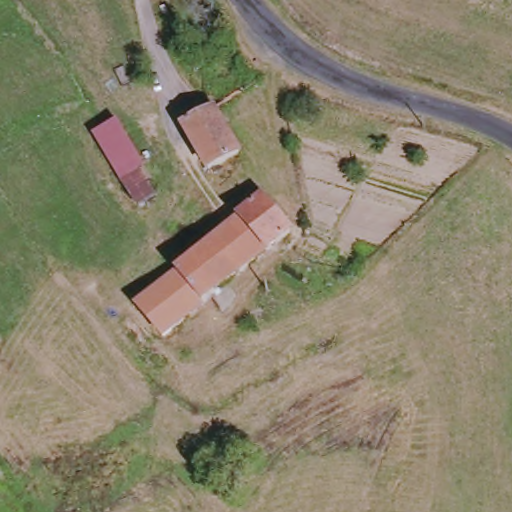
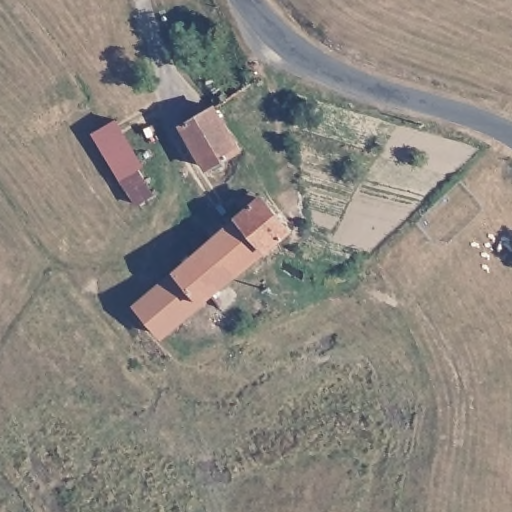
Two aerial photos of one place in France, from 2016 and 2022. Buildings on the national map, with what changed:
unchanged [(237,150),(210,170),(180,128),(210,108),(237,150)]
unchanged [(90,131),(115,116),(157,194),(135,208),(90,131)]
unchanged [(251,206),(245,199),(253,192),(260,199),(266,196),(292,228),(164,335),(138,302),(251,206)]

